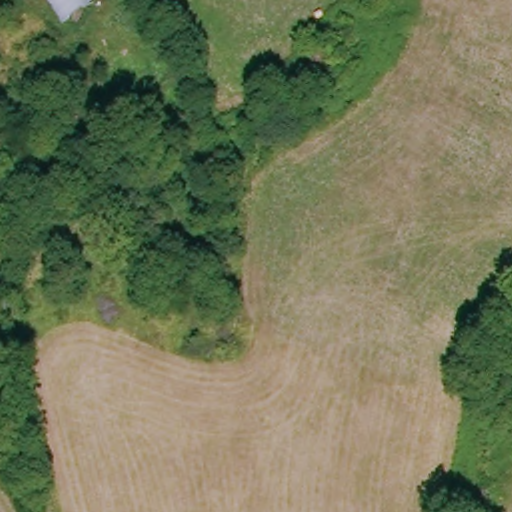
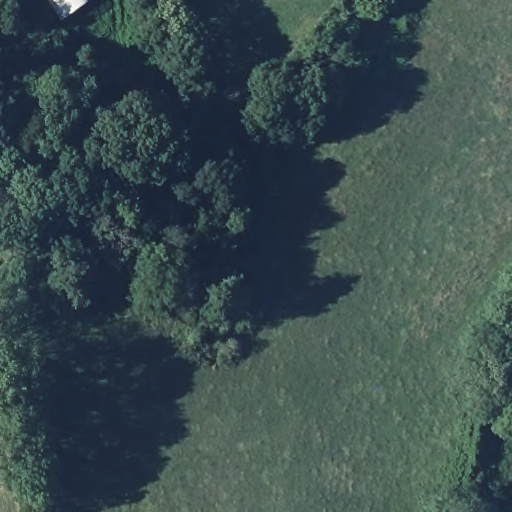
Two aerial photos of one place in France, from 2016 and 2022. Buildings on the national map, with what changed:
unchanged [(65,20),(50,0),(89,0),(90,2),(65,20)]

